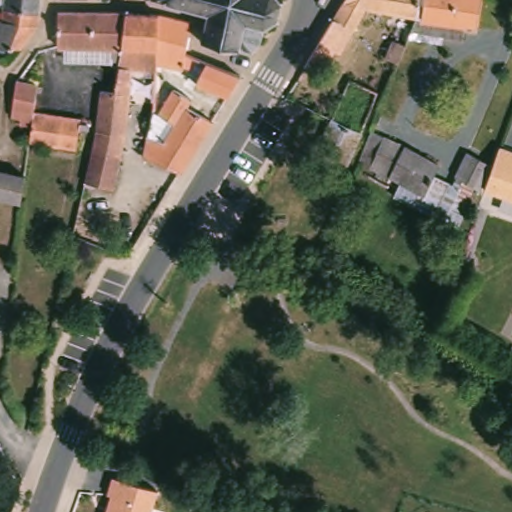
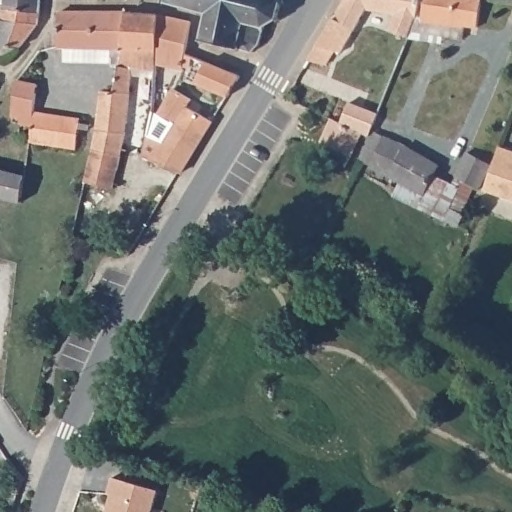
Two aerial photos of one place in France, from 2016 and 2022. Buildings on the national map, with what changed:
unchanged [(21,46),(0,44),(0,19),(1,19),(2,0),(37,0),(36,25),(21,46)]
unchanged [(277,17),(270,22),(267,33),(262,35),(260,46),(252,52),(204,40),(210,15),(164,4),(165,0),(278,0),(280,4),(277,17)]
unchanged [(317,49),(344,0),(385,0),(381,15),(363,11),(337,59),(332,57),(325,72),(308,64),(317,49)]
unchanged [(381,15),(385,0),(419,0),(416,20),(381,15)]
unchanged [(422,21),(425,0),(481,0),(481,2),(476,30),(465,28),(463,41),(421,35),(422,21)]
unchanged [(68,51),(61,51),(60,16),(127,12),(121,63),(111,64),(69,66),(68,51)]
unchanged [(100,128),(96,127),(96,126),(97,121),(100,98),(102,90),(117,91),(121,63),(127,12),(160,15),(166,17),(155,67),(153,74),(130,69),(126,113),(132,114),(130,131),(125,130),(116,196),(104,195),(87,194),(100,128)]
unchanged [(189,26),(182,56),(192,58),(189,69),(181,67),(180,72),(155,67),(166,17),(189,26)]
unchanged [(241,66),(224,96),(193,80),(204,60),(241,66)]
unchanged [(310,169),(331,125),(351,84),(380,95),(361,136),(340,183),(327,177),(322,175),(310,169)]
unchanged [(33,132),(24,131),(25,125),(13,124),(19,86),(37,87),(35,119),(82,121),(81,144),(86,145),(85,154),(47,151),(31,150),(32,136),(33,132)]
unchanged [(170,124),(157,115),(167,97),(209,124),(179,175),(141,151),(147,136),(158,144),(170,124)]
unchanged [(147,136),(136,135),(139,104),(150,105),(147,136)]
unchanged [(359,162),(371,134),(440,169),(435,179),(451,186),(467,156),(492,168),(485,188),(482,195),(475,192),(462,216),(399,184),(359,162)]
unchanged [(500,149),(512,153),(512,198),(485,188),(492,168),(500,149)]
unchanged [(22,180),(20,205),(0,200),(0,171),(23,176),(22,180)]
unchanged [(399,184),(462,216),(455,232),(392,199),(399,184)]
unchanged [(159,495),(154,512),(105,512),(109,497),(106,495),(111,477),(159,495)]

